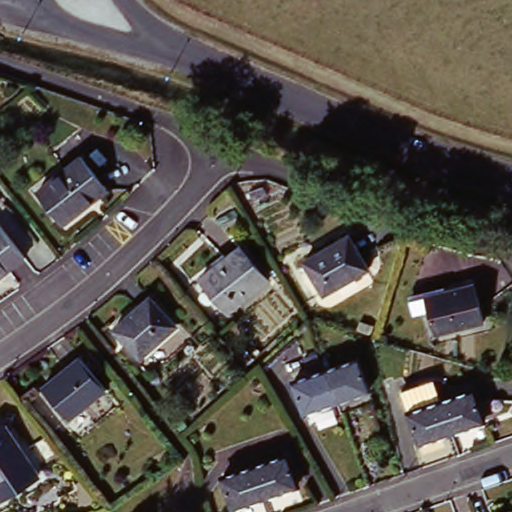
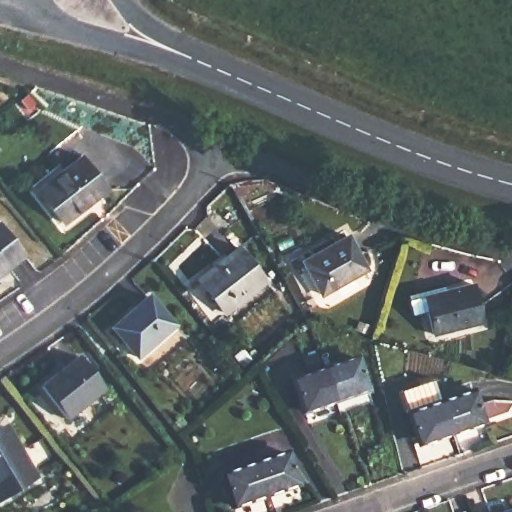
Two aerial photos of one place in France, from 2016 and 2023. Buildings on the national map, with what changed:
unchanged [(82,157),(108,188),(65,222),(39,190),(82,157)]
unchanged [(0,224),(26,257),(0,277),(0,224)]
unchanged [(351,240),(371,274),(330,300),(309,264),(351,240)]
unchanged [(244,248),(272,282),(234,314),(205,279),(244,248)]
unchanged [(487,322),(440,336),(434,313),(420,316),(416,301),(430,297),(477,285),(487,322)]
unchanged [(150,298),(176,328),(140,359),(114,328),(150,298)]
unchanged [(85,359),(110,391),(75,419),(47,387),(85,359)]
unchanged [(358,361),(369,390),(336,402),(326,372),(358,361)]
unchanged [(336,402),(303,414),(293,383),(326,372),(336,402)]
unchanged [(436,403),(447,433),(415,443),(396,390),(428,380),(436,401),(436,403)]
unchanged [(436,403),(469,391),(475,405),(488,401),(495,416),(447,433),(436,403)]
unchanged [(2,424),(33,473),(0,494),(0,425),(2,424)]
unchanged [(287,455),(298,485),(265,497),(254,466),(287,455)]
unchanged [(265,497),(233,508),(222,477),(254,466),(265,497)]

